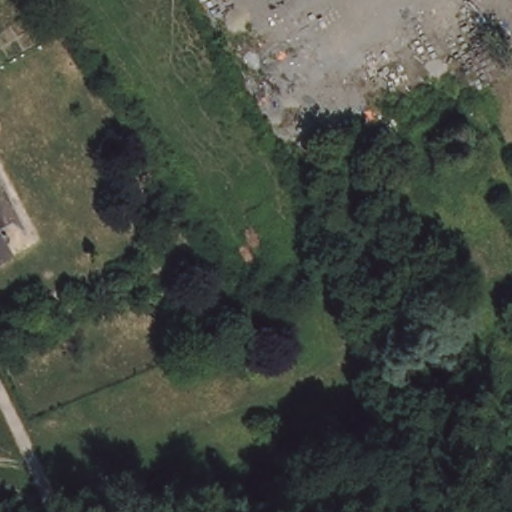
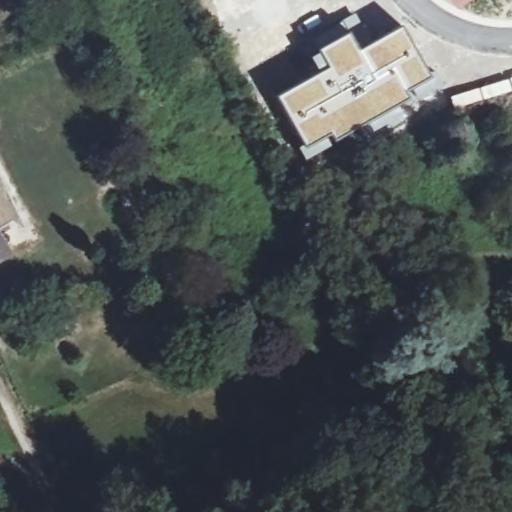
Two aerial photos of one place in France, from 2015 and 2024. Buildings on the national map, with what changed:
new [(449,0),(471,0),(453,9),(449,0)]
new [(316,71),(308,56),(344,33),(337,23),(355,13),(361,24),(351,30),(359,45),(373,72),(389,65),(410,101),(398,108),(401,113),(371,131),(367,124),(304,159),(298,149),(304,145),(276,96),(316,71)]
new [(402,25),(440,83),(410,101),(389,65),(373,72),(359,45),(402,25)]
new [(512,89),(512,90),(453,110),(449,96),(508,78),(512,89)]
unchanged [(28,233),(13,224),(0,230),(0,174),(28,233)]
unchanged [(10,253),(0,259),(0,237),(10,253)]

